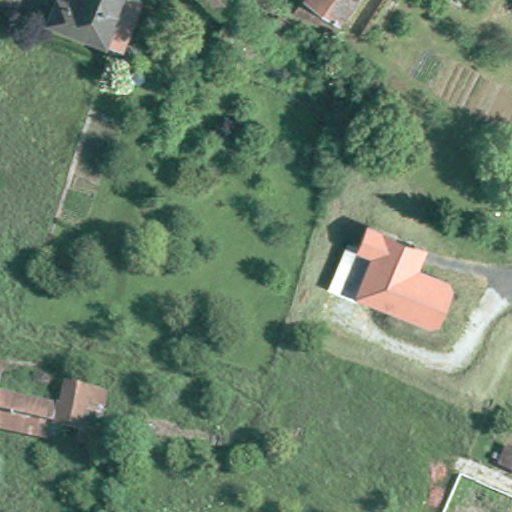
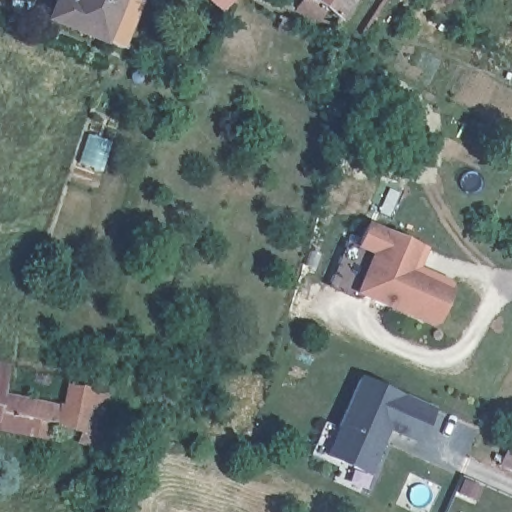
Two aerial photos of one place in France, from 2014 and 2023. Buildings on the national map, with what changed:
unchanged [(108,41),(53,18),(60,0),(125,0),(108,41)]
unchanged [(216,0),(246,0),(233,15),(216,0)]
unchanged [(295,4),(297,0),(352,0),(341,15),(325,4),(318,13),(295,4)]
unchanged [(428,249),(420,268),(451,281),(453,287),(435,328),(359,294),(356,299),(327,287),(348,241),(356,247),(367,221),(428,249)]
new [(435,407),(420,444),(389,431),(370,474),(324,456),(356,376),(435,407)]
unchanged [(0,387),(0,382),(1,382),(0,387)]
unchanged [(70,385),(109,393),(100,435),(61,426),(65,411),(70,385)]
unchanged [(61,426),(27,419),(23,436),(0,431),(0,396),(65,411),(61,426)]

